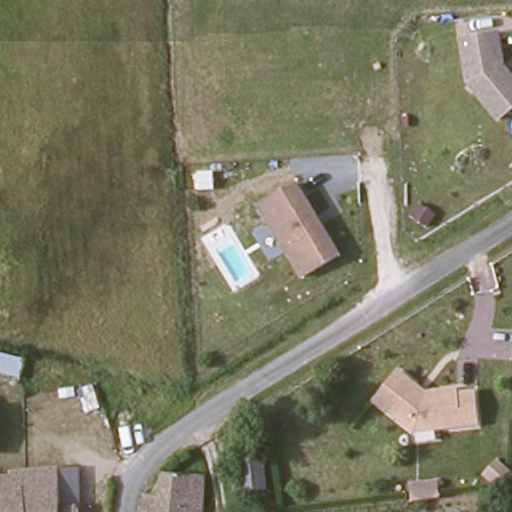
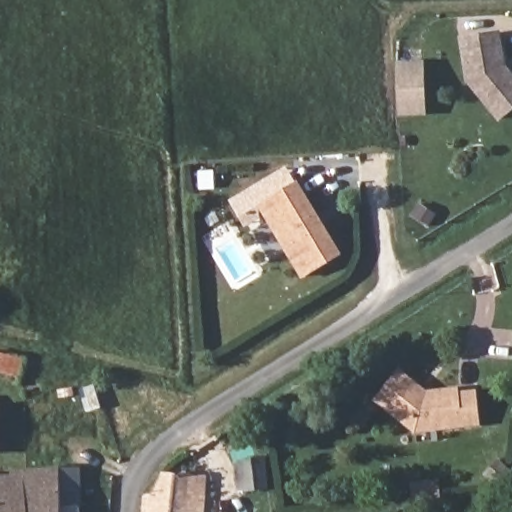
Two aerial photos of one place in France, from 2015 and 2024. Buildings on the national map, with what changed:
unchanged [(501,34),(507,67),(512,73),(512,112),(503,120),(471,84),(464,41),(501,34)]
new [(399,117),(397,61),(424,60),(426,115),(399,117)]
unchanged [(342,255),(306,280),(260,211),(296,187),(342,255)]
unchanged [(403,213),(409,199),(427,205),(421,220),(403,213)]
unchanged [(0,352),(27,358),(23,378),(0,374),(0,352)]
unchanged [(462,391),(462,395),(480,393),(483,426),(420,433),(380,403),(403,373),(420,386),(432,396),(433,395),(462,391)]
unchanged [(239,496),(229,462),(261,450),(274,487),(239,496)]
unchanged [(59,470),(80,470),(82,506),(75,507),(76,512),(26,512),(25,471),(59,470)]
unchanged [(0,512),(0,476),(7,475),(7,472),(25,471),(26,512),(0,512)]
unchanged [(151,498),(163,500),(164,481),(205,485),(204,512),(141,512),(141,500),(151,498)]
unchanged [(439,482),(440,497),(418,500),(415,500),(413,485),(439,482)]

